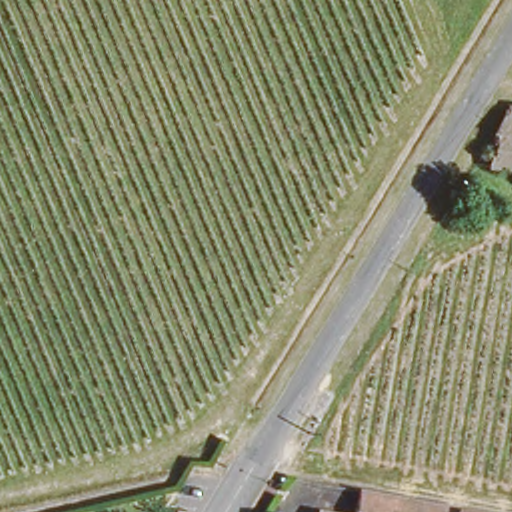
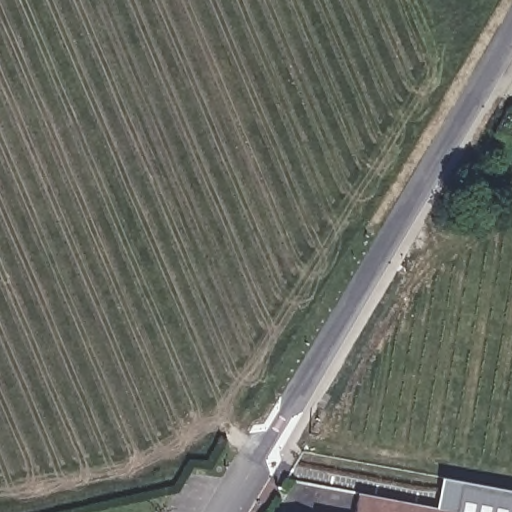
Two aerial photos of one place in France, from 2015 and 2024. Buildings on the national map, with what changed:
unchanged [(478,145),(488,145),(491,133),(510,103),(512,103),(512,165),(477,162),(478,145)]
new [(512,490),(512,512),(453,512),(454,508),(444,507),(434,505),(440,477),(512,490)]
unchanged [(357,490),(394,497),(434,505),(444,507),(454,508),(453,512),(352,512),(357,490)]

